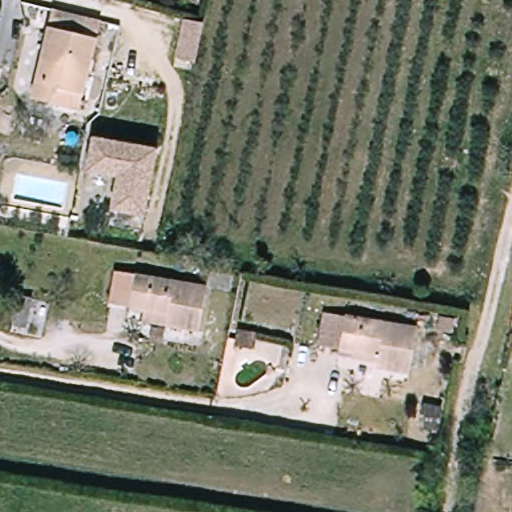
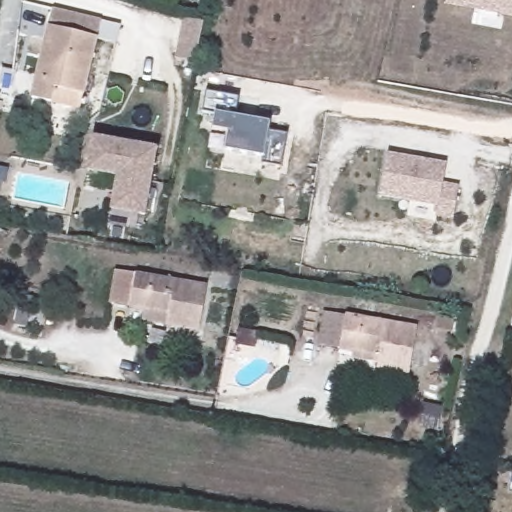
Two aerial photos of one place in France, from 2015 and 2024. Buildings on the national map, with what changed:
new [(447,0),(512,0),(512,17),(446,5),(447,0)]
unchanged [(55,103),(35,98),(58,10),(103,22),(86,94),(82,109),(55,103)]
unchanged [(209,26),(201,60),(175,54),(183,20),(209,26)]
new [(206,84),(242,92),(237,111),(275,119),(272,128),(292,132),(285,165),(263,160),(264,153),(224,144),(228,126),(212,123),(215,108),(201,105),(206,84)]
unchanged [(88,173),(93,137),(155,144),(153,163),(116,159),(115,176),(88,173)]
new [(385,154),(445,165),(441,185),(457,188),(451,219),(434,217),(436,207),(378,195),(385,154)]
unchanged [(153,163),(147,217),(112,212),(115,176),(116,159),(153,163)]
unchanged [(1,242),(0,241),(0,226),(3,227),(1,242)]
unchanged [(143,309),(122,307),(128,275),(203,287),(197,330),(163,325),(141,322),(143,309)]
unchanged [(361,352),(346,349),(320,346),(326,309),(351,314),(423,325),(417,372),(383,367),(384,362),(360,359),(361,352)]

